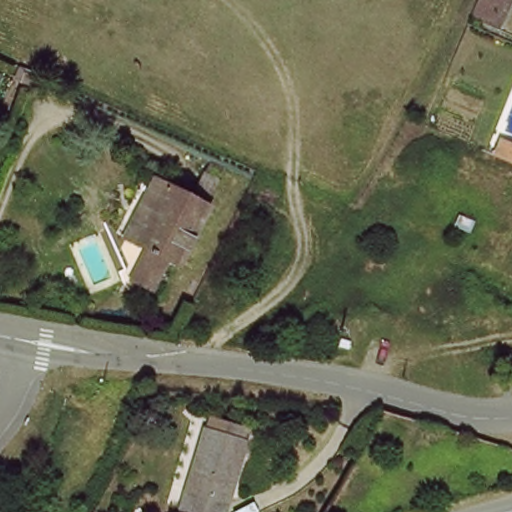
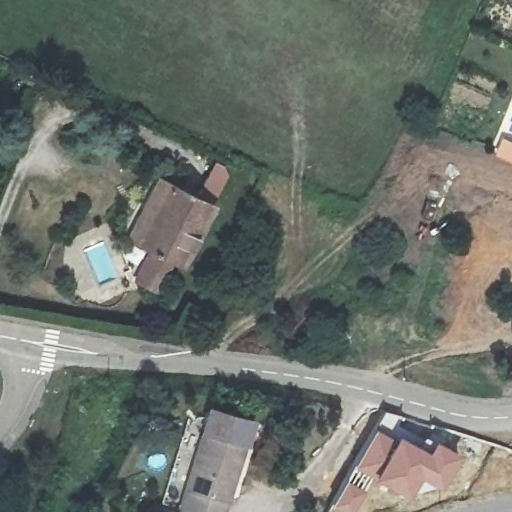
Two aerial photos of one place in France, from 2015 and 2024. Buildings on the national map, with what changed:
unchanged [(126,277),(145,240),(132,235),(158,175),(204,200),(176,257),(166,252),(147,288),(126,277)]
new [(384,409),(399,415),(391,432),(427,448),(433,437),(461,452),(440,488),(420,478),(408,497),(352,468),(384,409)]
unchanged [(182,509),(209,416),(251,429),(224,512),(189,512),(182,509)]
new [(346,477),(364,486),(349,512),(335,512),(329,508),(346,477)]

